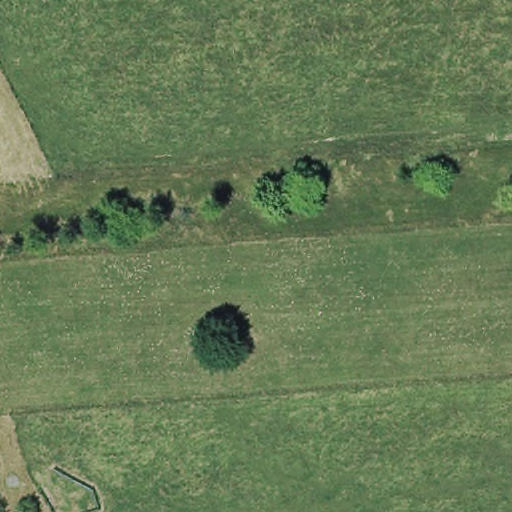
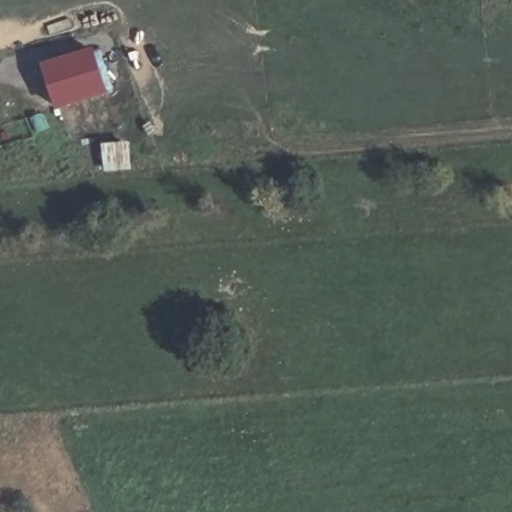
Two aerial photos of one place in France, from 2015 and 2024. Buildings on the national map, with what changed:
new [(94,47),(108,94),(53,111),(41,62),(94,47)]
new [(130,141),(132,170),(103,172),(100,142),(130,141)]
demolished [(6,450),(0,451),(0,431),(6,450)]

